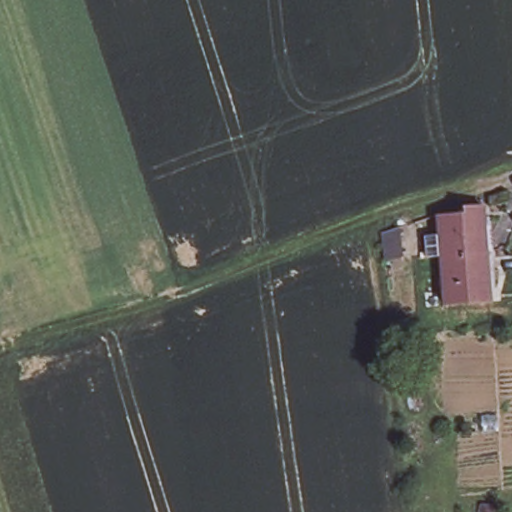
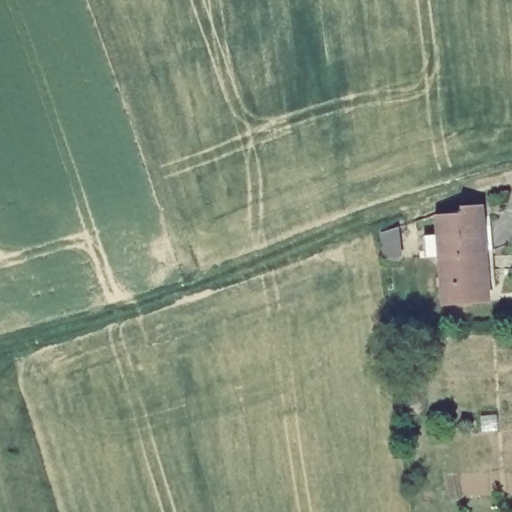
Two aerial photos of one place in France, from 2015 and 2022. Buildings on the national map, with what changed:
unchanged [(443,307),(438,257),(425,258),(424,237),(437,236),(435,217),(457,216),(457,210),(479,209),(483,252),(487,303),(443,307)]
unchanged [(398,232),(402,263),(384,264),(380,237),(398,232)]
unchanged [(377,321),(373,287),(383,285),(387,320),(377,321)]

